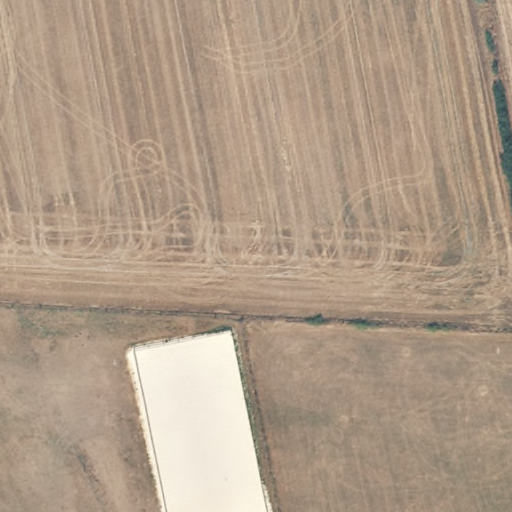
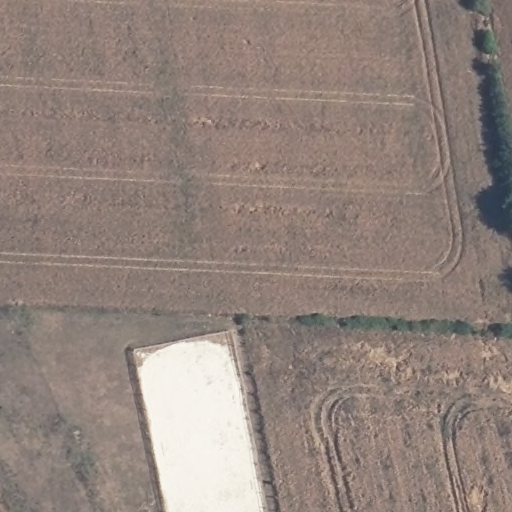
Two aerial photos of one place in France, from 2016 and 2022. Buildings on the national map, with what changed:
[]

